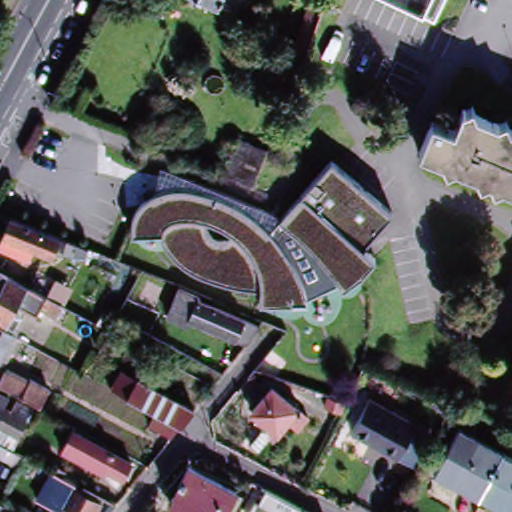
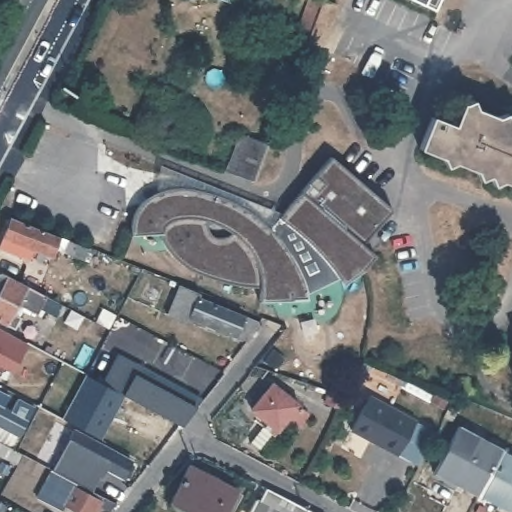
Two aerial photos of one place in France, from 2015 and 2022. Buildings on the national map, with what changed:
unchanged [(227,2),(222,0),(229,0),(227,2)]
unchanged [(433,9),(414,0),(438,0),(433,9)]
unchanged [(288,64),(309,9),(322,14),(301,69),(288,64)]
unchanged [(496,181),(492,174),(487,172),(480,175),(475,167),(456,159),(449,161),(443,154),(423,145),(436,113),(458,122),(466,102),(512,121),(512,182),(504,178),(496,181)]
unchanged [(226,168),(238,136),(267,146),(256,180),(226,169),(226,168)]
unchanged [(398,206),(368,240),(380,251),(353,281),(313,290),(315,297),(269,298),(269,283),(228,282),(193,265),(173,246),(161,234),(135,226),(139,211),(147,196),(165,186),(191,183),(227,193),(257,207),(275,224),(335,154),(398,206)]
unchanged [(67,247),(62,245),(60,251),(47,245),(43,254),(24,246),(20,255),(0,247),(0,223),(3,214),(48,232),(52,233),(64,238),(81,245),(76,257),(66,253),(67,247)]
unchanged [(7,276),(9,277),(13,279),(16,281),(38,293),(63,306),(65,308),(59,318),(42,309),(38,317),(22,308),(17,317),(22,319),(15,331),(7,326),(0,322),(0,293),(0,272),(7,276)]
unchanged [(240,336),(209,324),(208,327),(192,321),(190,326),(168,318),(182,286),(201,293),(203,288),(215,292),(213,298),(203,294),(200,300),(247,318),(262,324),(253,335),(247,343),(239,339),(240,336)]
unchanged [(10,356),(4,353),(0,362),(0,330),(2,331),(13,337),(19,340),(10,356)]
unchanged [(177,434),(153,422),(160,408),(132,393),(116,384),(126,365),(143,373),(201,404),(196,410),(186,422),(177,434)]
unchanged [(16,375),(29,382),(31,379),(50,389),(42,406),(1,384),(7,371),(10,373),(16,375)]
unchanged [(252,439),(269,419),(253,406),(274,381),(299,400),(311,410),(302,423),(289,412),(278,426),(261,446),(252,439)]
unchanged [(372,392),(418,417),(399,451),(354,426),(372,392)]
unchanged [(346,399),(343,410),(326,405),(329,393),(346,399)]
unchanged [(21,454),(15,467),(0,459),(0,396),(9,400),(4,410),(12,414),(18,403),(32,411),(13,450),(17,452),(21,454)]
unchanged [(458,408),(448,426),(439,421),(449,403),(458,408)]
unchanged [(478,496),(434,474),(456,430),(500,453),(478,496)]
unchanged [(82,437),(132,464),(124,479),(107,469),(104,475),(71,457),(82,437)]
unchanged [(512,512),(511,512),(478,496),(500,453),(512,459),(512,512)]
unchanged [(37,465),(52,473),(46,486),(31,478),(37,465)]
unchanged [(235,493),(225,512),(189,512),(168,501),(186,467),(235,493)]
unchanged [(54,500),(63,482),(73,488),(100,503),(95,512),(75,512),(63,505),(54,500)]
unchanged [(256,502),(263,488),(308,512),(247,512),(254,500),(256,502)]

